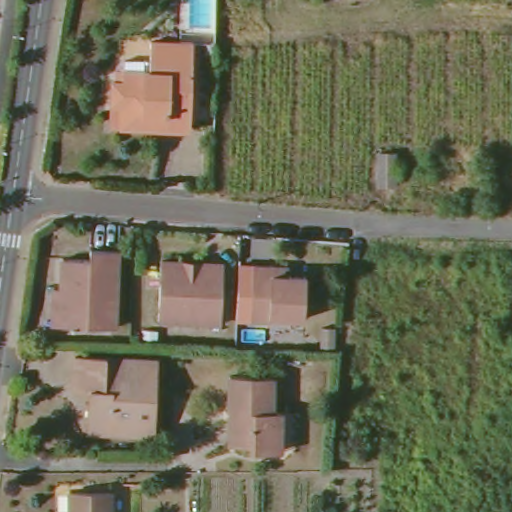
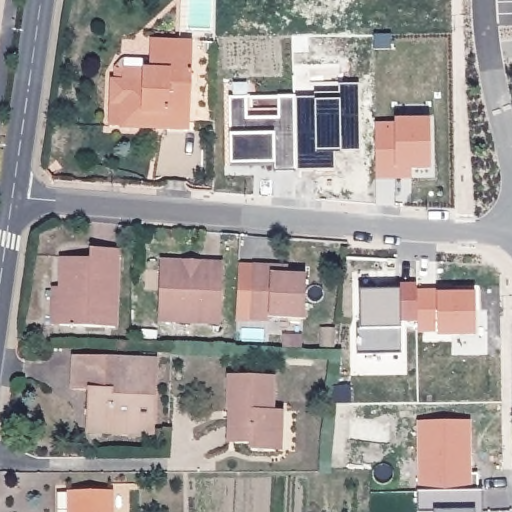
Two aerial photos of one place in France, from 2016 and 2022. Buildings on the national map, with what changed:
unchanged [(106,103),(107,80),(118,80),(118,68),(140,68),(145,68),(146,40),(187,41),(185,128),(116,127),(105,126),(106,103)]
new [(312,97),(313,82),(358,82),(357,151),(332,151),(333,170),(297,169),(296,94),(312,97)]
new [(296,94),(297,169),(274,170),(274,162),(230,163),(230,95),(296,94)]
new [(430,120),(431,168),(412,168),(412,176),(376,177),(375,123),(395,123),(396,120),(430,120)]
demolished [(395,152),(395,182),(381,183),(381,152),(395,152)]
unchanged [(54,290),(62,290),(63,257),(90,259),(90,248),(120,250),(117,283),(113,283),(111,312),(116,312),(115,327),(61,324),(53,324),(54,290)]
unchanged [(158,320),(161,260),(183,261),(183,266),(200,266),(201,261),(223,262),(221,322),(158,320)]
unchanged [(271,265),(288,265),(288,274),(305,275),(302,318),(270,317),(270,321),(250,319),(253,264),(271,265)]
new [(356,330),(360,329),(360,292),(396,291),(396,286),(415,286),(417,322),(401,322),(401,356),(356,356),(356,330)]
new [(477,289),(477,335),(437,336),(437,333),(418,333),(417,322),(415,286),(477,289)]
unchanged [(111,433),(90,433),(91,390),(73,389),(75,358),(157,361),(155,424),(154,435),(111,433)]
unchanged [(277,452),(254,452),(253,445),(237,445),(231,445),(231,412),(230,412),(230,377),(274,377),(275,411),(283,411),(283,437),(282,451),(277,452)]
new [(473,419),(470,492),(418,492),(417,420),(472,419),(473,419)]
unchanged [(110,492),(111,512),(72,512),(71,493),(110,492)]
new [(419,512),(418,492),(481,492),(481,512),(435,512),(435,511),(419,512)]

